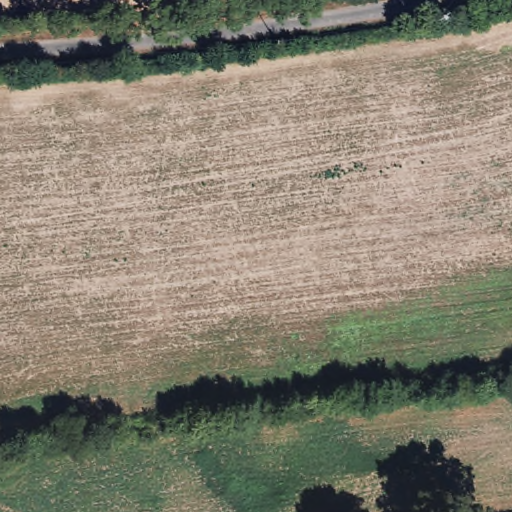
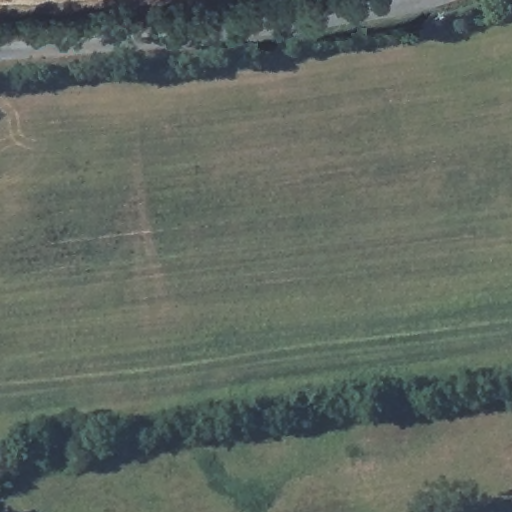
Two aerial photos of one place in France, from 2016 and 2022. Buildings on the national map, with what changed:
[]

